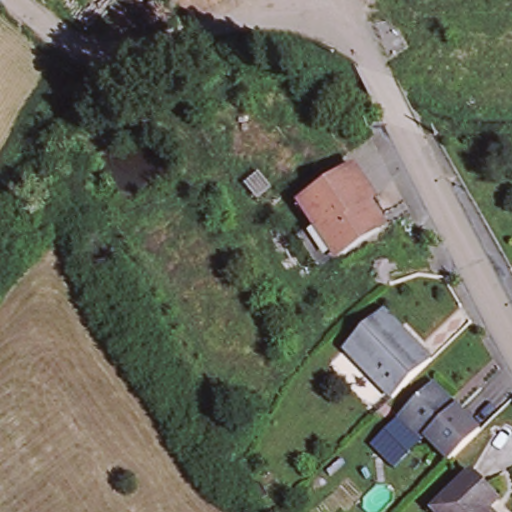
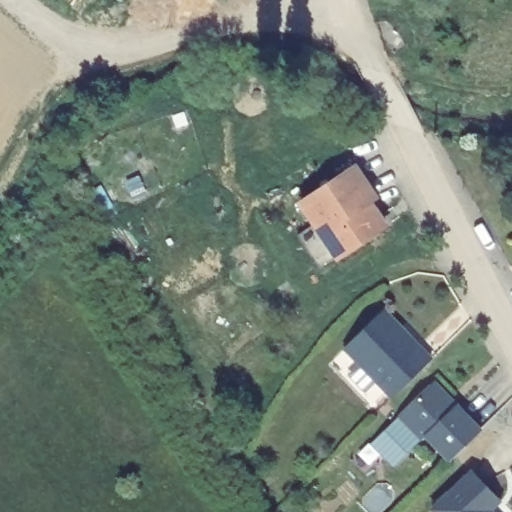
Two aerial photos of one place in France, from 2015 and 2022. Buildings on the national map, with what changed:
unchanged [(305,233),(317,224),(302,202),(354,167),(375,197),(391,220),(380,228),(340,256),(327,265),(321,269),(298,237),(305,233)]
unchanged [(383,311),(432,361),(391,401),(342,351),(383,311)]
unchanged [(431,381),(453,403),(480,430),(450,459),(425,435),(422,438),(397,415),(425,386),(431,381)]
unchanged [(486,506),(492,512),(436,512),(430,506),(470,470),(496,496),(486,506)]

